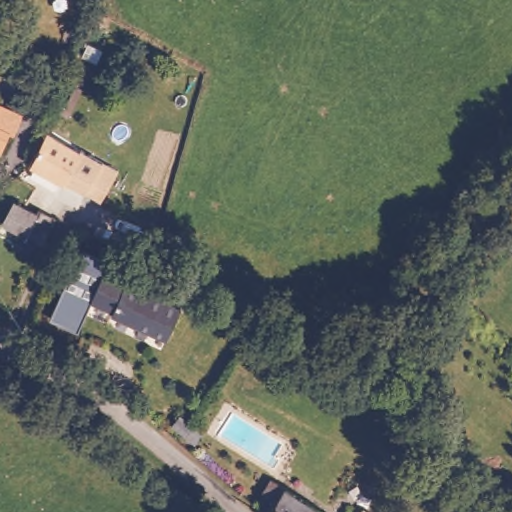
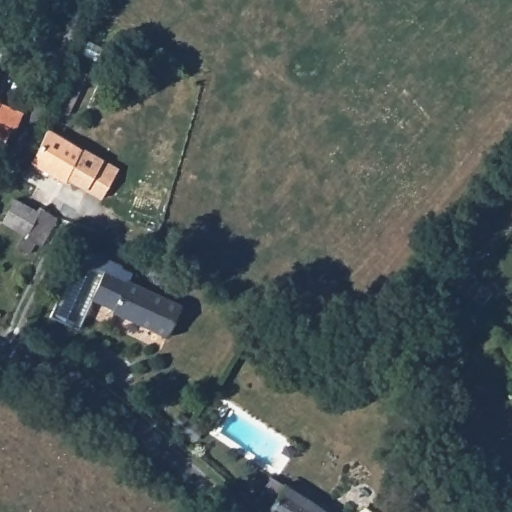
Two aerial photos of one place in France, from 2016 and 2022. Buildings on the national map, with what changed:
unchanged [(2,98),(27,107),(20,125),(14,123),(5,146),(0,144),(0,97),(2,98)]
unchanged [(82,146),(107,164),(120,173),(101,201),(86,191),(67,178),(66,182),(34,159),(52,124),(82,146)]
unchanged [(12,199),(36,214),(40,209),(60,223),(43,248),(35,243),(27,251),(15,242),(21,234),(0,221),(0,215),(12,199)]
unchanged [(85,252),(87,254),(91,246),(127,267),(127,268),(137,274),(132,282),(182,311),(167,338),(115,308),(117,306),(96,294),(79,324),(52,308),(85,252)]
unchanged [(268,511),(287,482),(331,512),(270,512),(268,511)]

